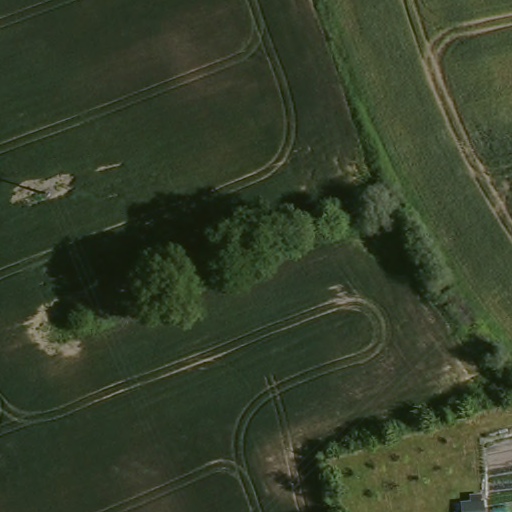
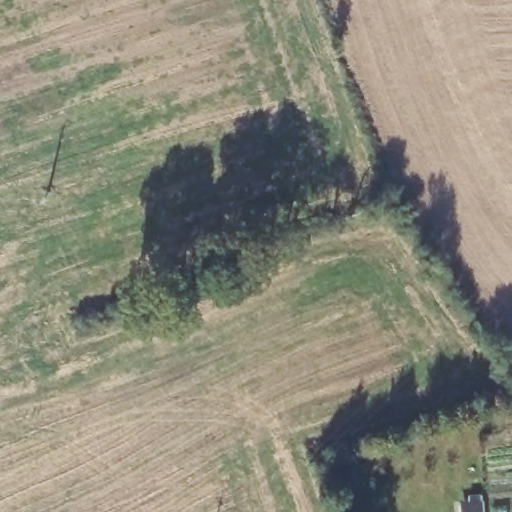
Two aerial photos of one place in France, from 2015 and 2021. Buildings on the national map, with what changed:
[]

